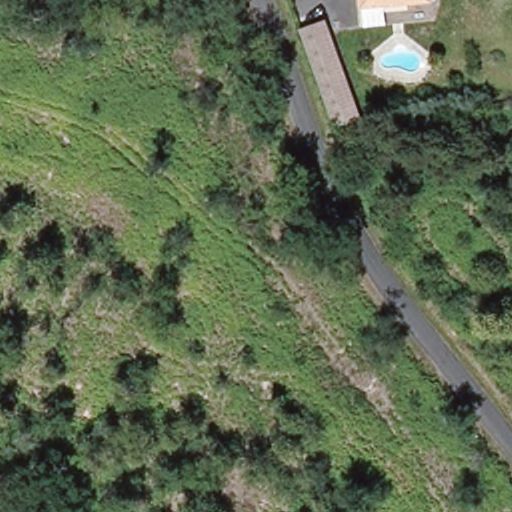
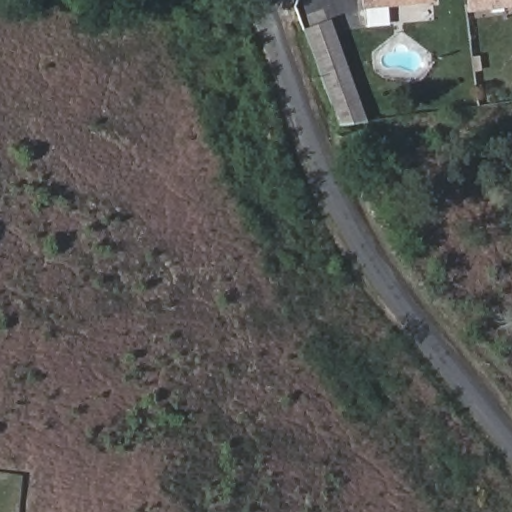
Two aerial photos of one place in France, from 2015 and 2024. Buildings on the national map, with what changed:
unchanged [(366,0),(426,0),(366,4),(366,0)]
new [(464,0),(512,0),(512,7),(466,12),(464,0)]
unchanged [(297,28),(323,19),(362,119),(334,121),(297,28)]

